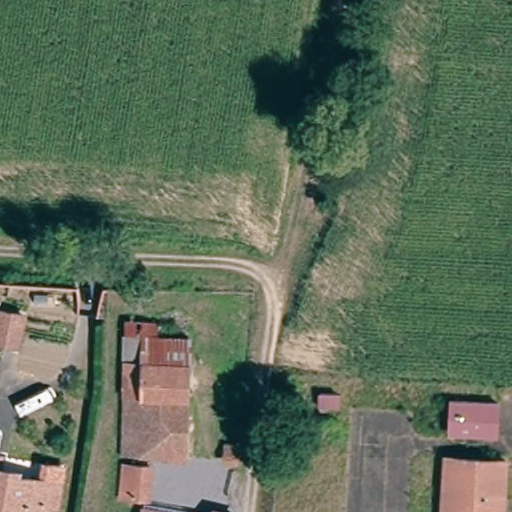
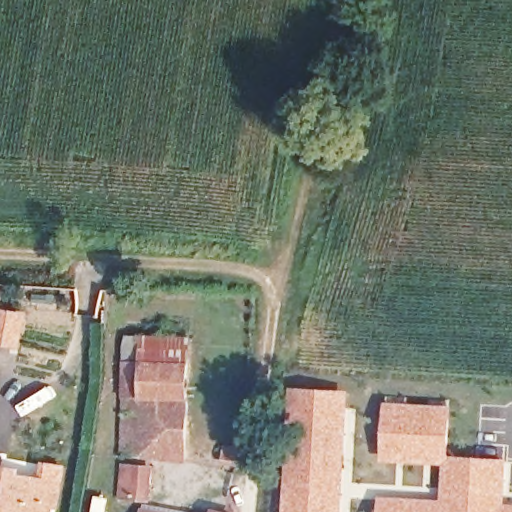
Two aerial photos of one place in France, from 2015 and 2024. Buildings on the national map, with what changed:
unchanged [(0,343),(0,312),(15,315),(10,345),(0,343)]
unchanged [(139,317),(200,321),(199,339),(137,334),(139,317)]
unchanged [(134,362),(137,334),(199,339),(196,363),(134,362)]
unchanged [(185,464),(124,457),(134,362),(196,363),(192,401),(185,464)]
new [(348,390),(348,416),(350,416),(343,512),(281,512),(288,387),(348,390)]
unchanged [(497,404),(495,435),(450,431),(452,401),(497,404)]
new [(385,402),(451,406),(445,459),(445,465),(381,462),(385,402)]
unchanged [(58,467),(58,487),(45,487),(42,512),(0,512),(0,459),(41,464),(58,467)]
unchanged [(441,512),(445,459),(507,462),(504,512),(441,512)]
unchanged [(119,498),(122,466),(152,471),(151,502),(150,502),(119,498)]
new [(441,512),(379,512),(380,497),(442,501),(441,512)]
new [(512,505),(512,512),(503,512),(504,505),(512,505)]
unchanged [(173,512),(147,512),(149,506),(173,512)]

